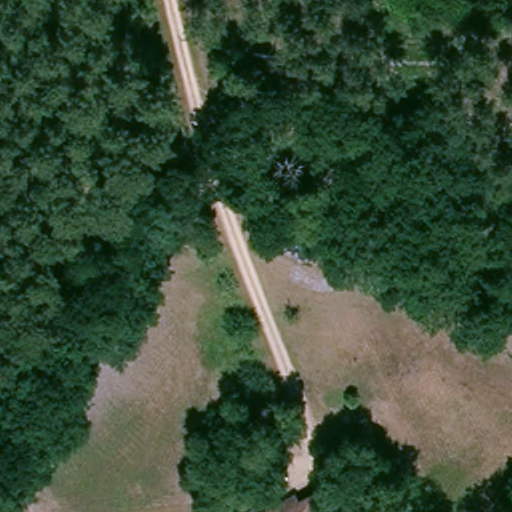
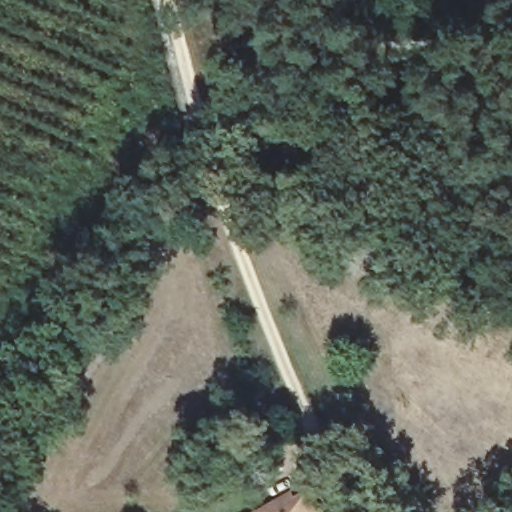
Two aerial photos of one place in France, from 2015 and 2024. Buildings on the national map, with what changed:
unchanged [(302,503),(280,512),(244,512),(296,491),(302,503)]
unchanged [(317,496),(324,512),(280,512),(302,503),(317,496)]

